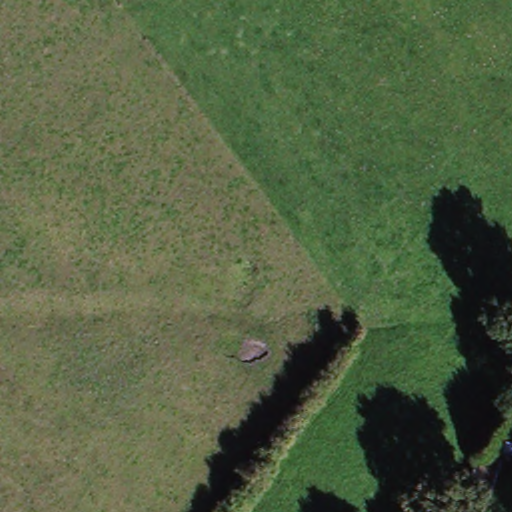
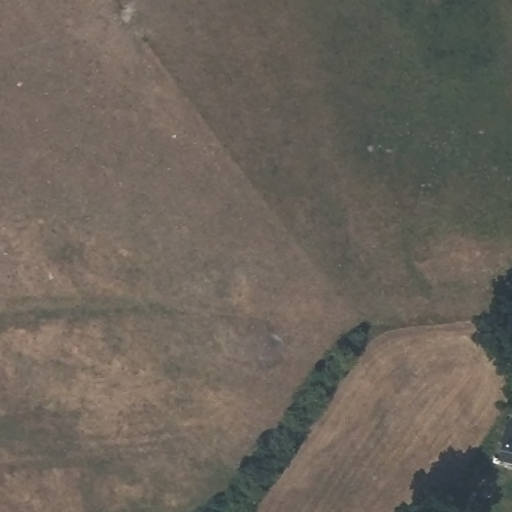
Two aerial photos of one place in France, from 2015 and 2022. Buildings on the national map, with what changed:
unchanged [(504,428),(512,430),(512,467),(496,463),(504,428)]

